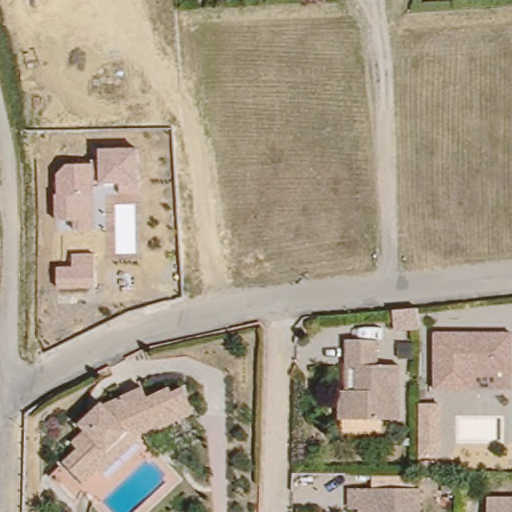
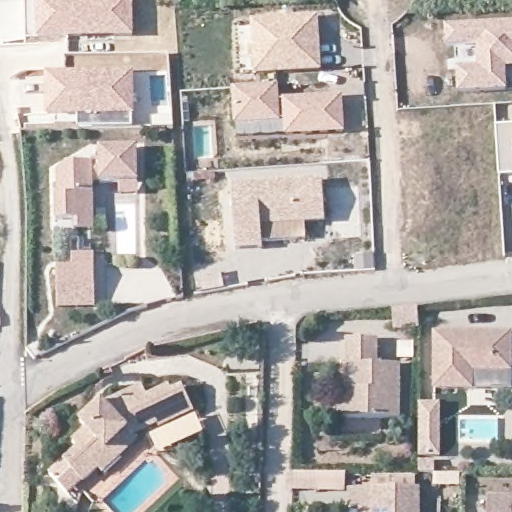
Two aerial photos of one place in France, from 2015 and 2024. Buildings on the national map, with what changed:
new [(37,39),(27,39),(25,2),(35,2),(35,0),(133,0),(134,37),(37,39)]
new [(318,16),(322,71),(252,74),(250,20),(318,16)]
new [(478,67),(475,44),(446,46),(445,26),(512,22),(512,69),(505,69),(507,90),(457,93),(456,70),(478,67)]
new [(72,70),(72,56),(117,55),(117,69),(135,70),(134,115),(77,117),(45,116),(46,73),(72,70)]
new [(277,86),(278,101),(279,101),(341,97),(343,132),(285,135),(285,120),(235,123),(233,88),(277,86)]
new [(500,176),(497,127),(512,126),(512,176),(500,176)]
unchanged [(55,194),(59,194),(59,174),(67,165),(100,164),(100,150),(138,149),(138,182),(138,194),(120,194),(120,183),(102,183),(95,183),(95,230),(74,230),(74,220),(55,220),(55,194)]
new [(322,181),(324,221),(303,221),(305,239),(260,241),(260,247),(235,248),(231,186),(322,181)]
unchanged [(57,267),(73,268),(72,254),(95,254),(96,288),(58,289),(57,267)]
unchanged [(420,311),(420,334),(395,333),(395,313),(420,311)]
unchanged [(478,386),(440,385),(440,330),(512,330),(512,368),(512,386),(478,386)]
unchanged [(345,385),(353,385),(353,361),(353,345),(353,335),(383,335),(383,345),(383,360),(405,360),(405,400),(405,414),(401,414),(385,413),(352,413),(345,413),(345,385)]
unchanged [(83,479),(66,460),(80,446),(75,440),(90,428),(82,420),(103,402),(106,404),(145,388),(149,397),(172,387),(174,392),(185,388),(195,412),(160,427),(158,424),(133,435),(137,441),(104,470),(100,466),(83,479)]
new [(427,403),(440,403),(440,454),(427,454),(427,403)]
new [(295,475),(347,477),(346,493),(295,491),(295,475)]
unchanged [(421,488),(421,512),(374,512),(374,491),(375,487),(421,488)]
unchanged [(488,498),(512,498),(512,512),(489,512),(488,498)]

